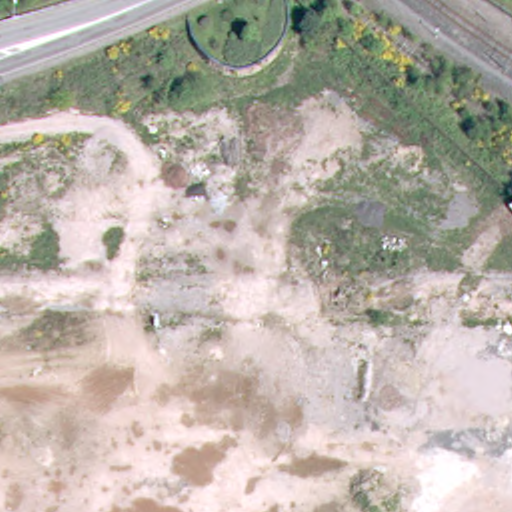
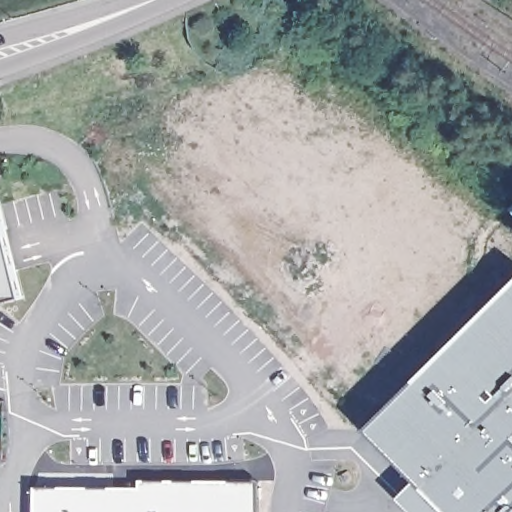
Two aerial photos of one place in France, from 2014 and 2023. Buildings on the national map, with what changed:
new [(24,296),(0,302),(0,206),(24,296)]
new [(512,283),(512,512),(443,512),(363,432),(512,283)]
new [(139,488),(139,482),(257,482),(257,512),(34,512),(33,489),(139,488)]

